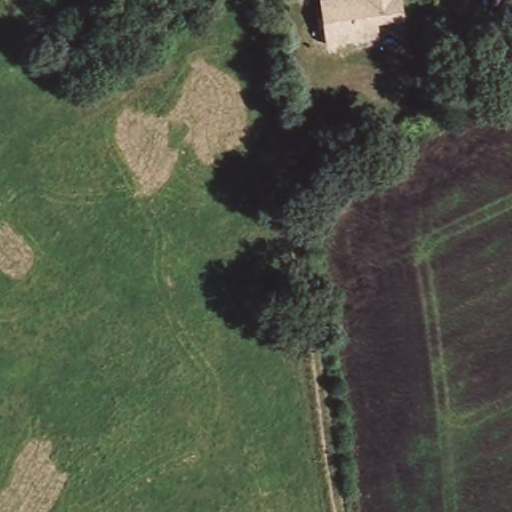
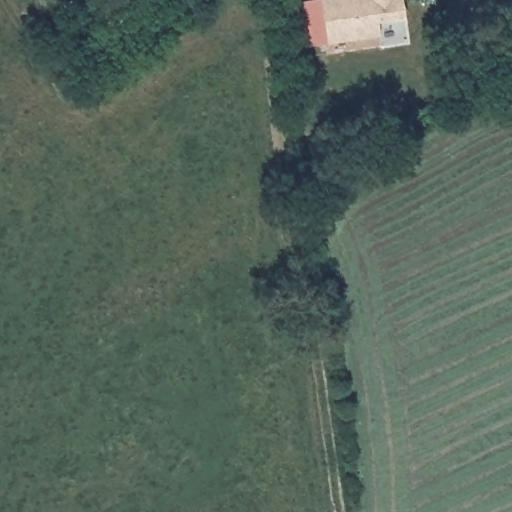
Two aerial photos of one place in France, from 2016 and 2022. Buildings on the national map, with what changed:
unchanged [(319,0),(399,0),(401,18),(377,21),(377,34),(326,41),(319,0)]

